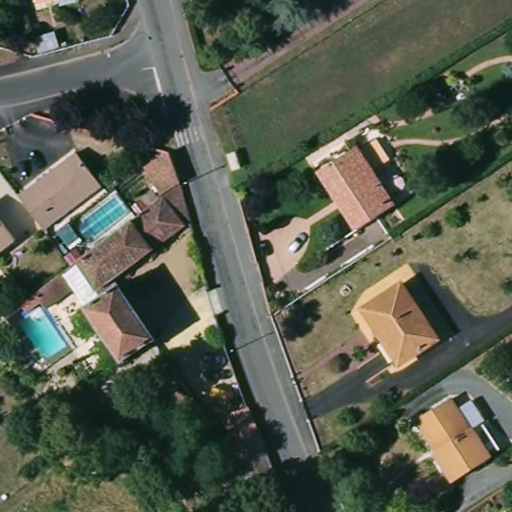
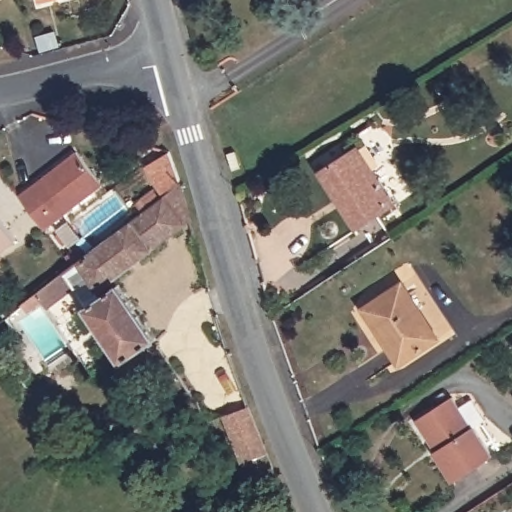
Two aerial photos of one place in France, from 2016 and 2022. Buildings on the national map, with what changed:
unchanged [(34,0),(44,0),(35,2),(34,0)]
unchanged [(392,204),(355,229),(318,172),(357,148),(392,204)]
unchanged [(100,183),(43,227),(17,195),(74,150),(100,183)]
unchanged [(55,301),(42,283),(75,258),(177,180),(189,218),(113,273),(157,335),(125,358),(124,356),(75,287),(55,301)]
unchanged [(14,238),(0,249),(0,220),(14,238)]
unchanged [(435,336),(395,362),(361,310),(400,285),(435,336)]
unchanged [(36,288),(48,305),(32,317),(20,300),(36,288)]
unchanged [(472,425),(480,421),(497,448),(452,477),(435,450),(439,447),(418,416),(452,394),(472,425)]
unchanged [(270,472),(246,480),(227,432),(251,425),(270,472)]

